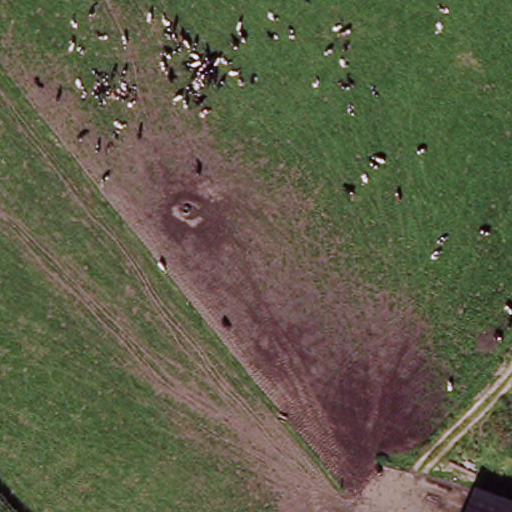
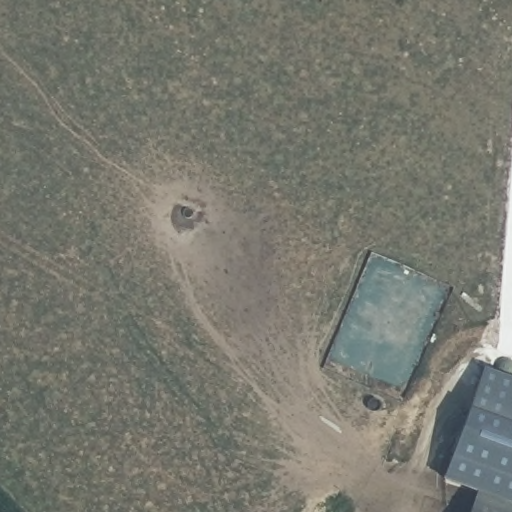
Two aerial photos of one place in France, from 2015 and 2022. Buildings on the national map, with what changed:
new [(485,367),(512,377),(512,503),(480,490),(443,478),(485,367)]
unchanged [(512,512),(472,512),(480,490),(512,503),(512,512)]

